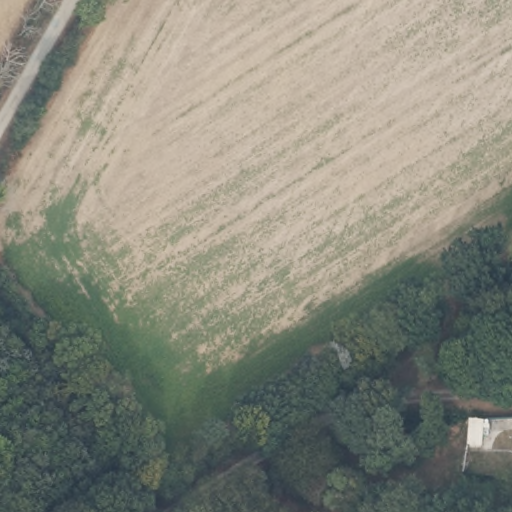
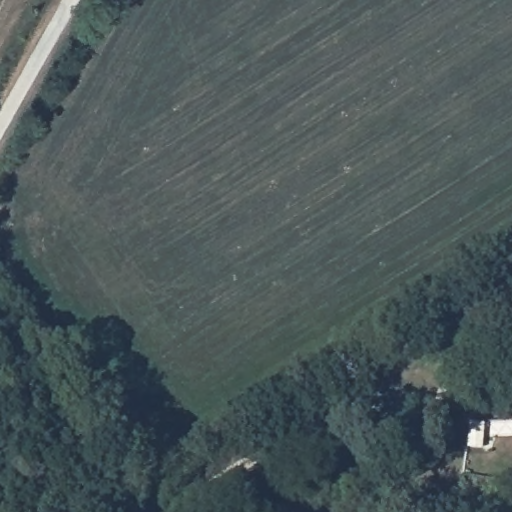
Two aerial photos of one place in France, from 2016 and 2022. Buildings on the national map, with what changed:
unchanged [(481,447),(468,446),(470,423),(483,424),(481,447)]

